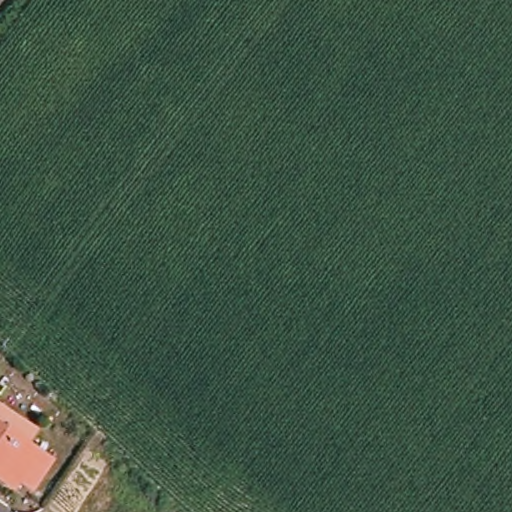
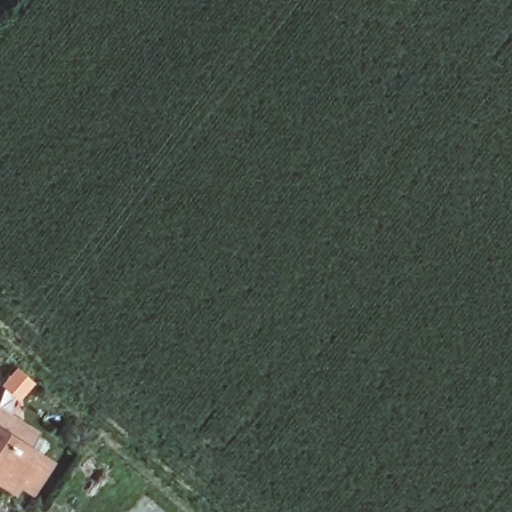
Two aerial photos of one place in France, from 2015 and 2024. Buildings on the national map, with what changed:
unchanged [(16,450),(31,460),(34,474),(24,488),(11,488),(6,484),(4,488),(0,493),(0,420),(25,438),(16,450)]

